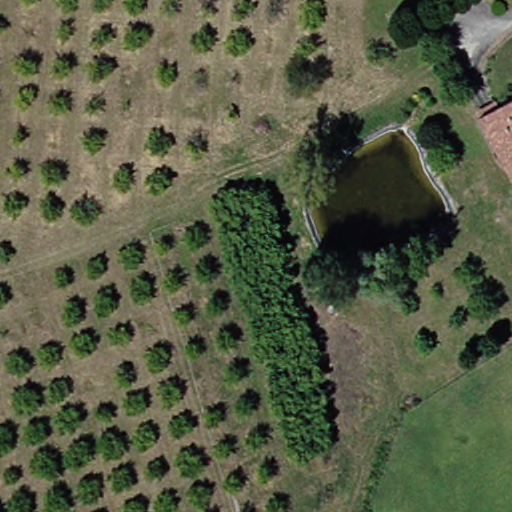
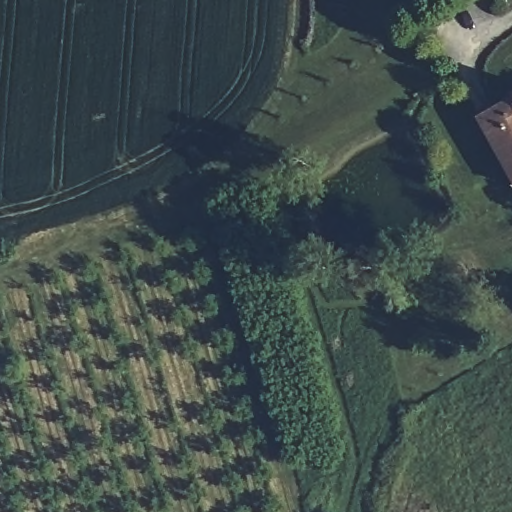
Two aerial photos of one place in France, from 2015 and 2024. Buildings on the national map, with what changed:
unchanged [(512,95),(512,174),(477,114),(512,95)]

